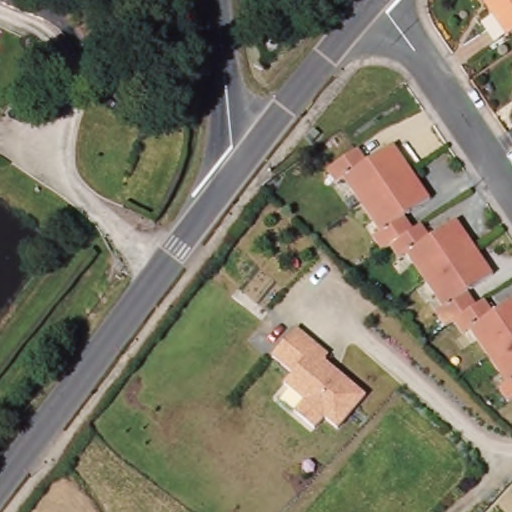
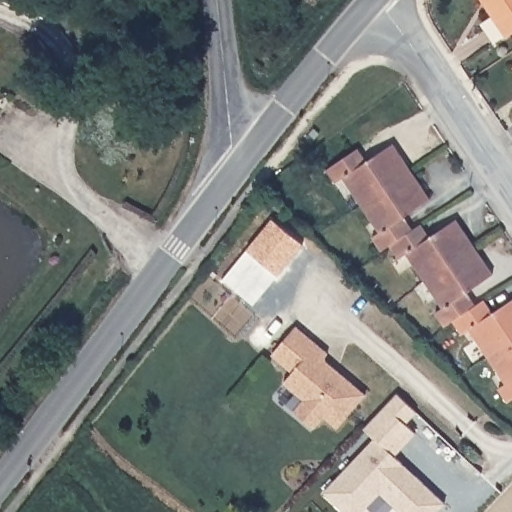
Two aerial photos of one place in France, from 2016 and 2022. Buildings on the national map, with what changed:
unchanged [(481,0),(512,0),(512,30),(506,35),(481,0)]
unchanged [(389,247),(382,251),(372,238),(381,233),(343,181),(337,186),(327,171),(355,153),(364,165),(391,148),(428,202),(402,220),(411,232),(421,227),(430,241),(456,224),(493,278),(468,295),(477,308),(486,302),(497,316),(512,306),(512,398),(503,387),(508,383),(472,330),(464,335),(456,322),(448,327),(437,314),(445,307),(407,256),(399,262),(389,247)]
unchanged [(301,325),(333,353),(331,359),(371,393),(342,427),(329,416),(320,427),(300,410),(309,399),(288,382),(297,371),(277,354),(301,325)]
new [(362,512),(345,512),(323,493),(374,438),(363,429),(397,394),(417,414),(407,425),(416,434),(396,456),(445,504),(436,512),(400,512),(380,493),(362,512)]

